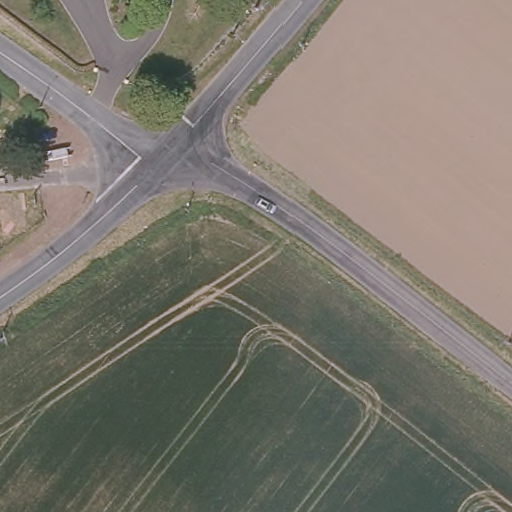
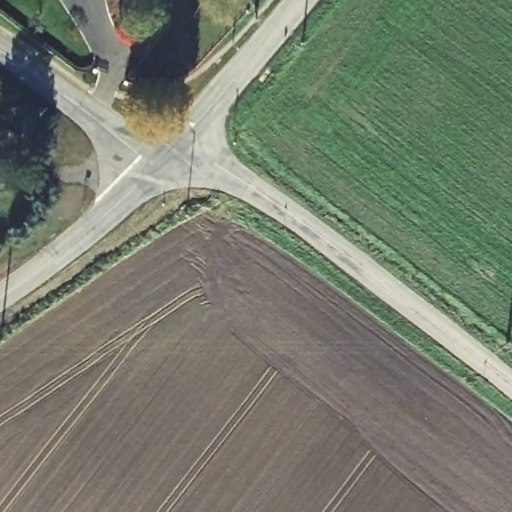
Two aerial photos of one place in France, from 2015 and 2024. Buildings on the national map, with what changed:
[]

